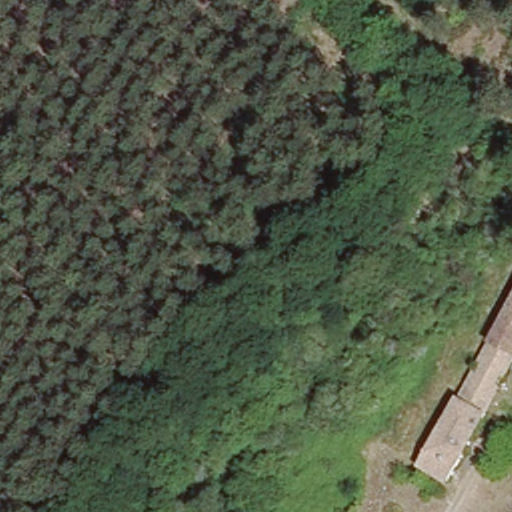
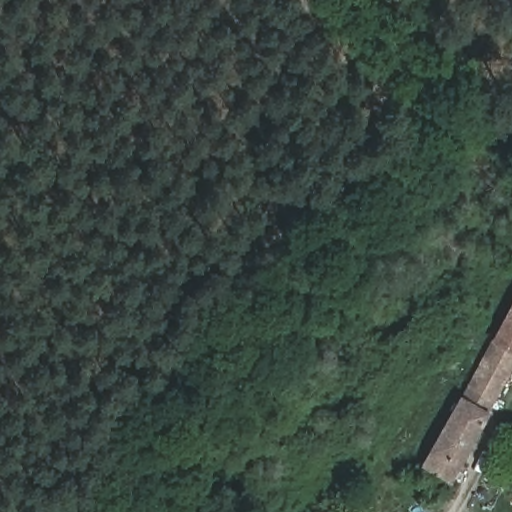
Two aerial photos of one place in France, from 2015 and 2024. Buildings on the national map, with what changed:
unchanged [(512,305),(512,360),(452,472),(424,458),(512,305)]

